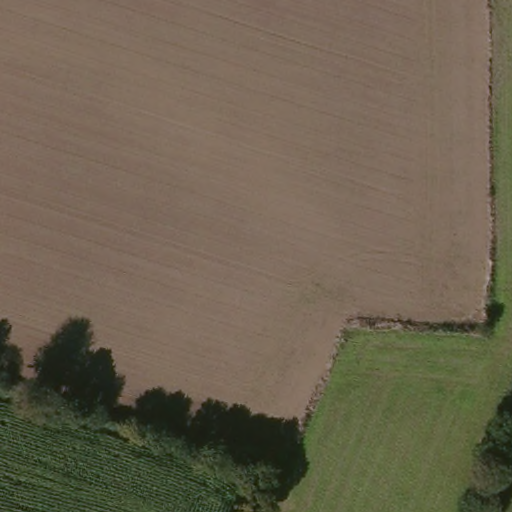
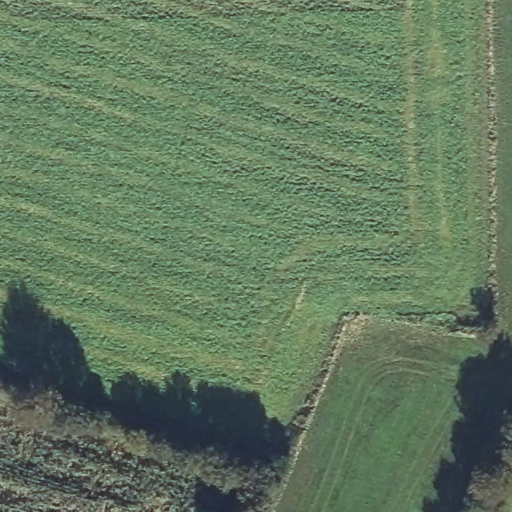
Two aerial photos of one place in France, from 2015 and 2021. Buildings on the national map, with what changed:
[]

